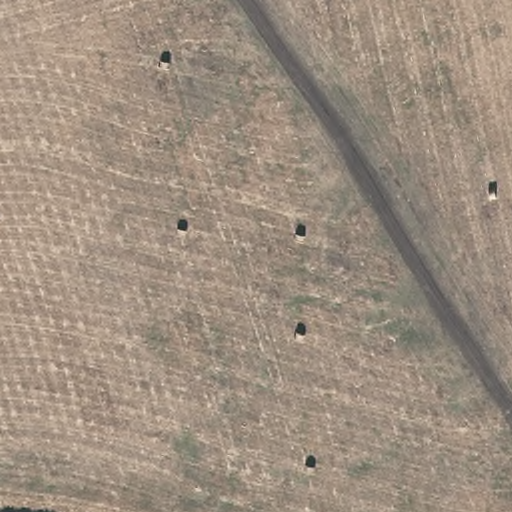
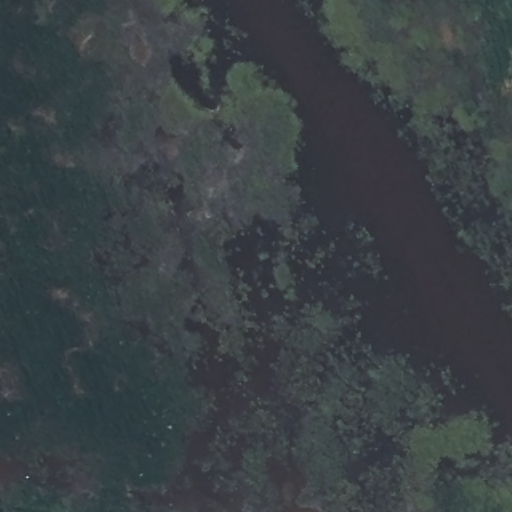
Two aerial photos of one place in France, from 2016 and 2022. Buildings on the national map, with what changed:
[]

